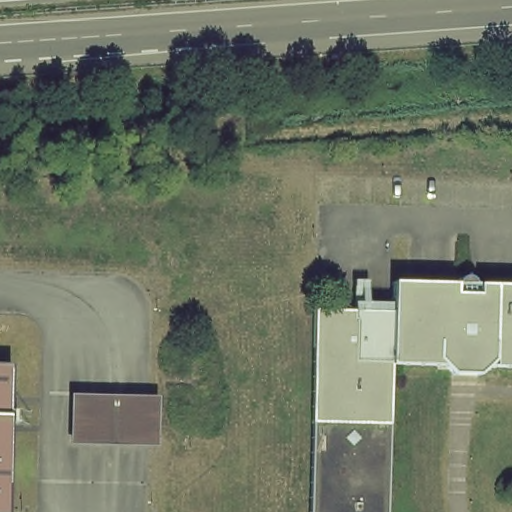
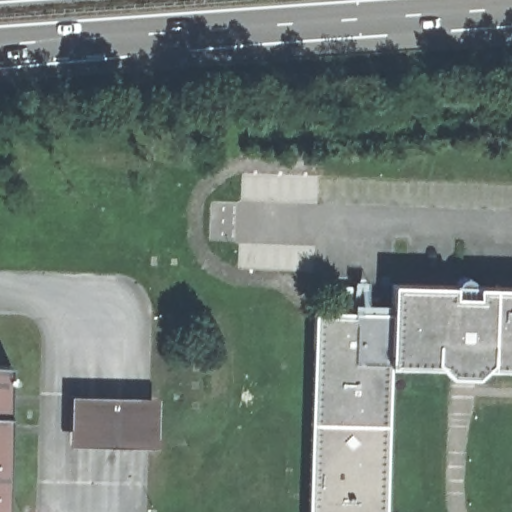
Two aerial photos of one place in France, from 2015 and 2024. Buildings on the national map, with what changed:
unchanged [(394,281),(512,285),(512,366),(392,363),(388,512),(311,512),(317,309),(394,311),(394,281)]
unchanged [(0,512),(0,364),(4,364),(0,512)]
unchanged [(160,401),(158,450),(104,448),(94,448),(71,447),(73,398),(100,399),(110,399),(160,401)]

